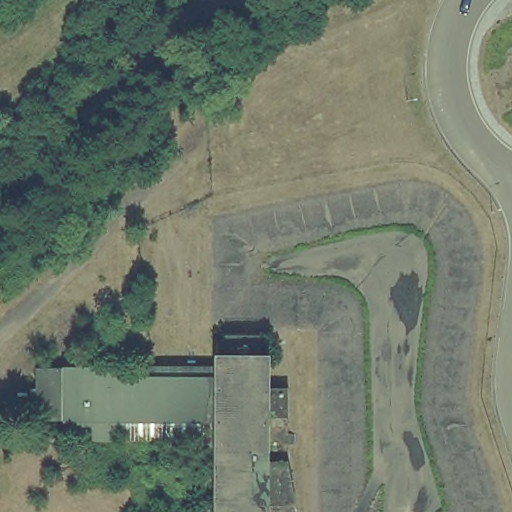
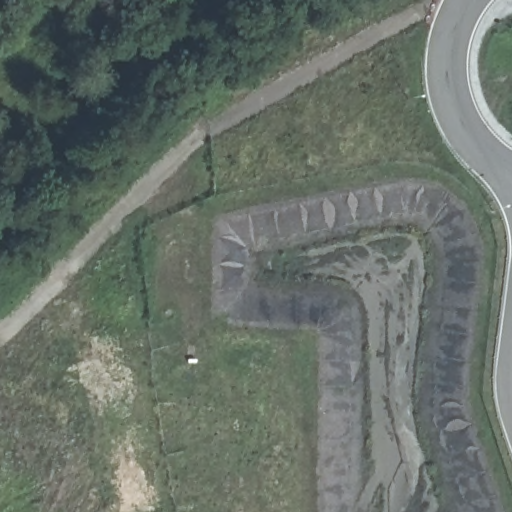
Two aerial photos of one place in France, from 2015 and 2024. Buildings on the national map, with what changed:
demolished [(214,438),(80,445),(76,424),(36,422),(32,363),(216,367),(215,352),(275,349),(272,512),(212,512),(214,438)]

